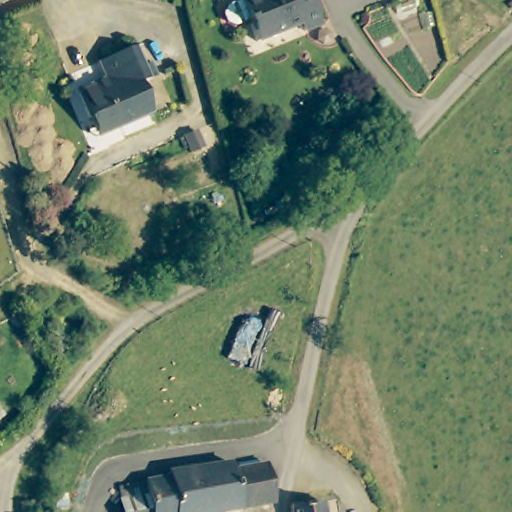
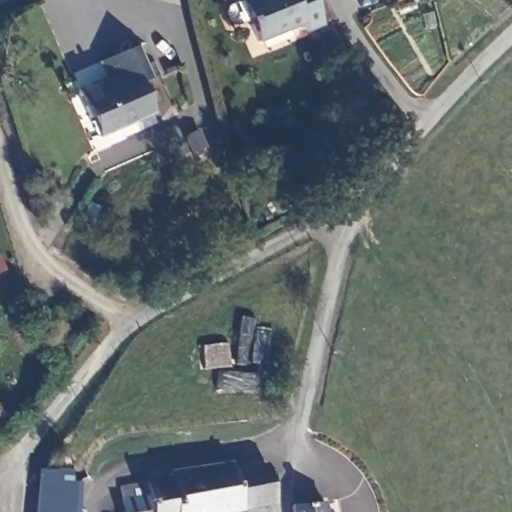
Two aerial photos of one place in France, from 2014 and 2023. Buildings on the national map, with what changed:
unchanged [(231,25),(227,16),(230,9),(243,3),(243,0),(314,0),(325,26),(310,32),(305,24),(260,43),(251,21),(237,27),(231,25)]
unchanged [(89,115),(80,93),(109,80),(102,61),(140,45),(155,77),(144,82),(158,112),(108,132),(98,136),(89,115)]
unchanged [(0,419),(0,406),(6,413),(0,419)]
unchanged [(121,485),(126,483),(170,476),(169,472),(216,465),(232,463),(234,469),(262,463),(268,463),(275,502),(222,511),(222,512),(125,512),(121,490),(121,485)]
new [(70,467),(71,481),(80,481),(78,512),(34,512),(38,468),(70,467)]
demolished [(46,510),(47,512),(24,512),(23,497),(36,495),(38,509),(46,510)]
demolished [(332,512),(315,512),(313,501),(329,500),(332,512)]
demolished [(288,503),(313,501),(315,512),(284,512),(282,503),(288,503)]
new [(323,503),(325,512),(293,512),(292,507),(323,503)]

